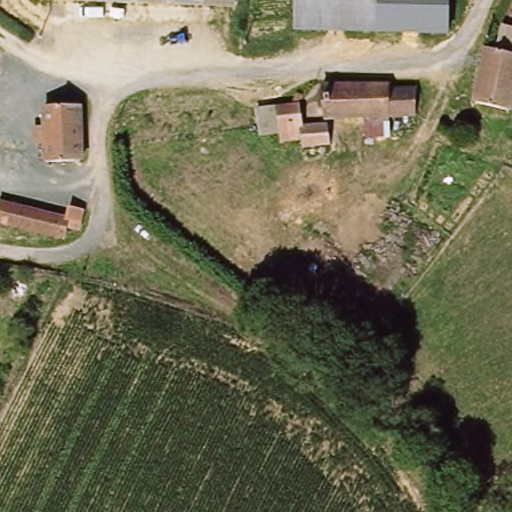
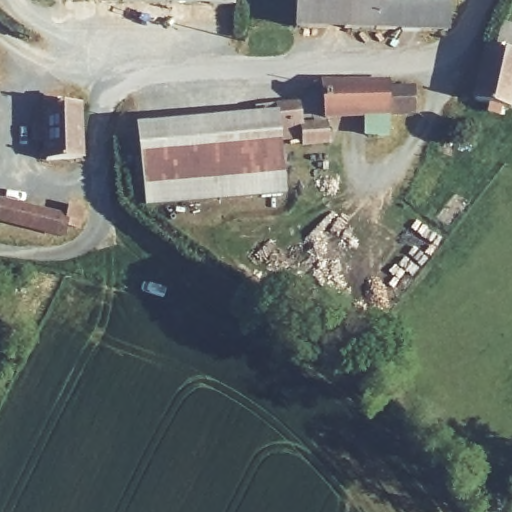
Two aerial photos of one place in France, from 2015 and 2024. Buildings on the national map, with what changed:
unchanged [(54,0),(101,0),(101,2),(54,0)]
unchanged [(101,2),(101,0),(239,0),(239,5),(101,2)]
unchanged [(295,28),(295,0),(447,0),(447,31),(295,28)]
unchanged [(512,26),(512,52),(496,49),(502,24),(512,26)]
unchanged [(487,47),(512,52),(512,102),(510,110),(472,100),(487,47)]
unchanged [(387,82),(390,119),(387,141),(362,143),(362,120),(325,122),(322,87),(387,82)]
unchanged [(417,86),(417,114),(390,115),(388,89),(417,86)]
unchanged [(294,106),(298,129),(325,129),(327,149),(297,150),(297,142),(276,143),(275,132),(271,109),(294,106)]
unchanged [(44,130),(43,108),(82,107),(82,161),(45,161),(45,145),(32,144),(32,131),(44,130)]
new [(269,112),(276,143),(281,142),(287,194),(144,209),(134,126),(269,112)]
unchanged [(67,220),(69,209),(84,212),(80,230),(67,227),(64,239),(0,222),(0,204),(67,220)]

